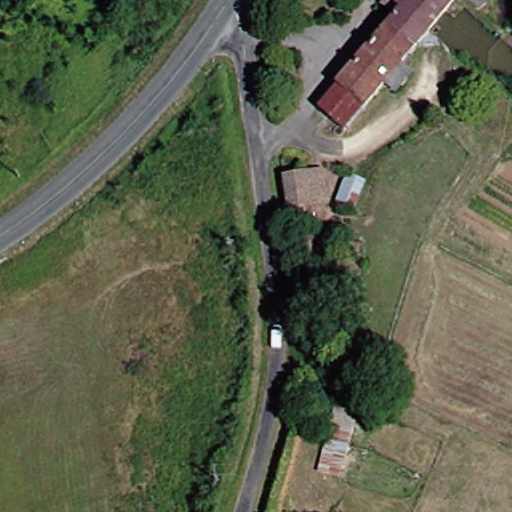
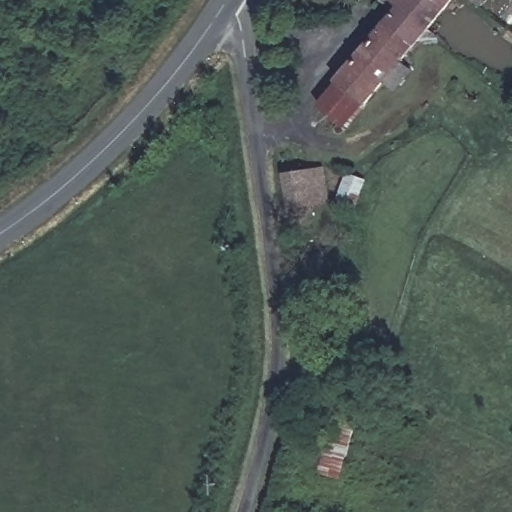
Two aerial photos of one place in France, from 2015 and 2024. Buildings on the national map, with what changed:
unchanged [(398,81),(360,123),(330,103),(410,10),(418,0),(466,0),(445,26),(415,62),(422,71),(405,88),(398,81)]
unchanged [(397,0),(418,0),(410,10),(397,0)]
unchanged [(325,167),(330,197),(315,200),(316,214),(302,214),(299,202),(288,203),(285,170),(312,170),(325,167)]
unchanged [(337,206),(352,173),(362,180),(365,186),(349,219),(337,206)]
unchanged [(347,416),(367,423),(352,480),(330,473),(347,416)]

